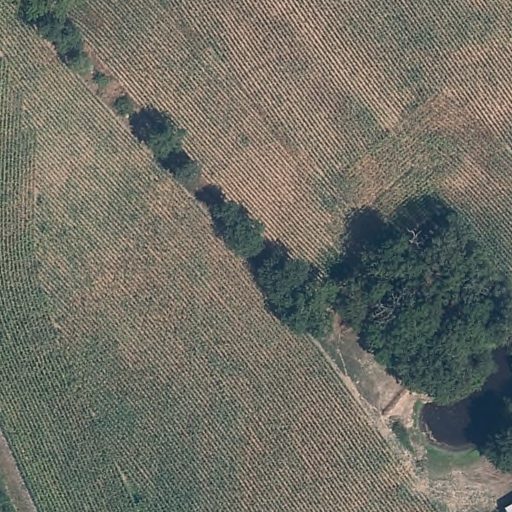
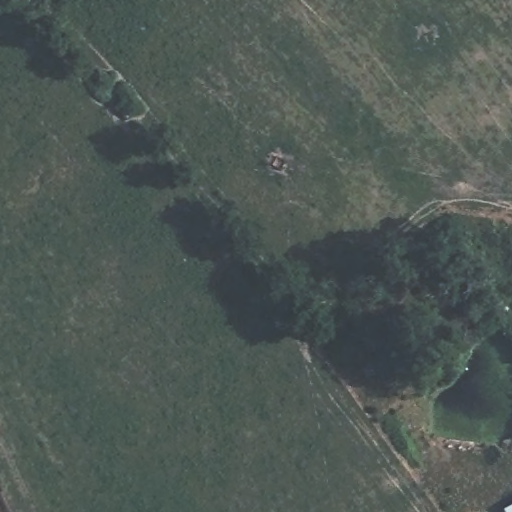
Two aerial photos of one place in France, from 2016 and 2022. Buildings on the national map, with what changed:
unchanged [(512,509),(512,512),(506,512),(512,509)]

